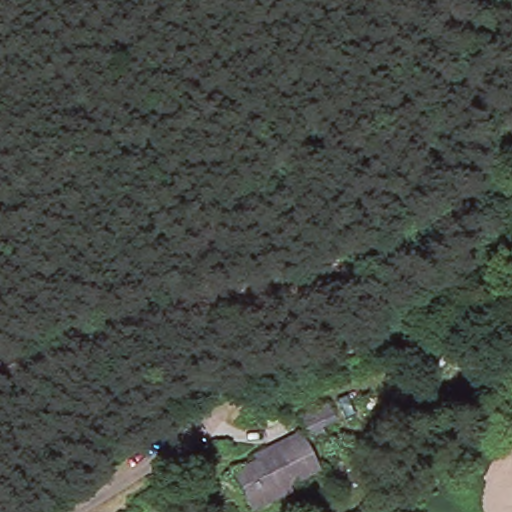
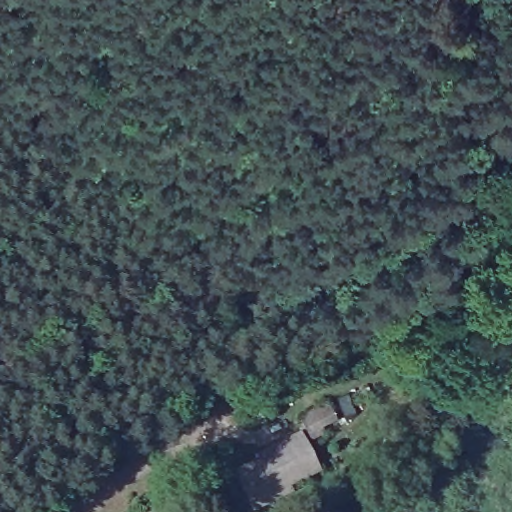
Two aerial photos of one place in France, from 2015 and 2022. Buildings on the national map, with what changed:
unchanged [(301,423),(298,417),(327,404),(330,411),(334,420),(320,427),(323,433),(308,439),(301,423)]
unchanged [(250,510),(243,494),(232,473),(255,462),(252,456),(266,449),(299,434),(302,440),(317,470),(285,485),(288,492),(250,510)]

